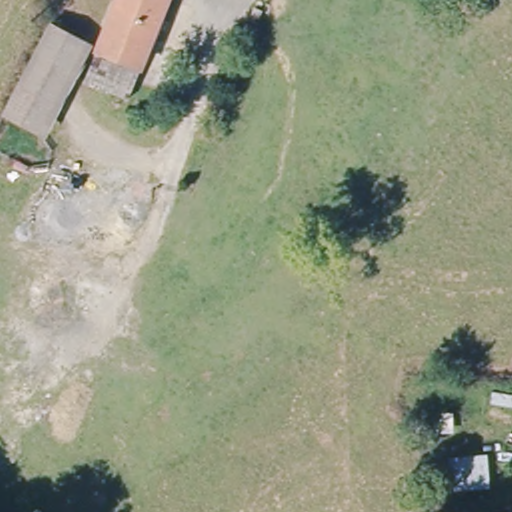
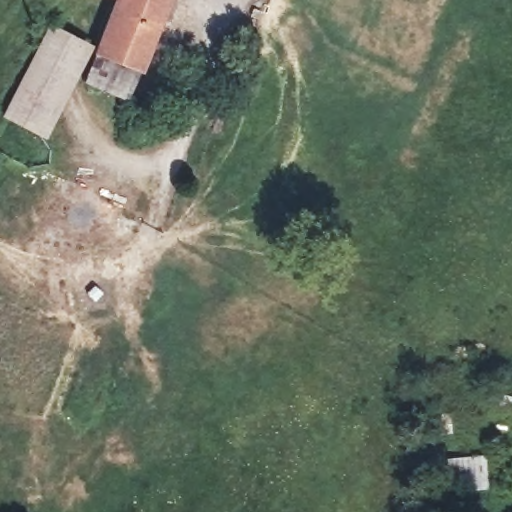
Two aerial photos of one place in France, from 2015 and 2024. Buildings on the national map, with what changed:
unchanged [(106,0),(157,0),(130,67),(85,49),(106,0)]
unchanged [(0,115),(0,108),(45,20),(88,39),(71,82),(42,140),(0,115)]
unchanged [(118,97),(74,79),(85,49),(130,67),(118,97)]
unchanged [(451,491),(444,457),(484,453),(488,488),(451,491)]

